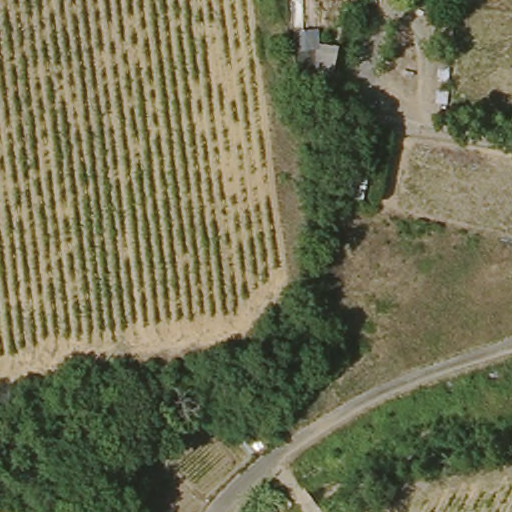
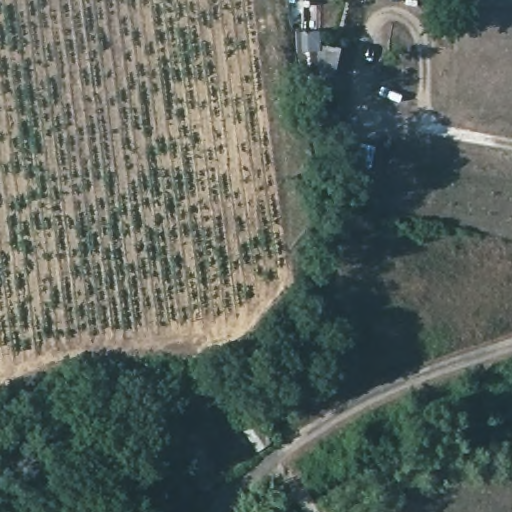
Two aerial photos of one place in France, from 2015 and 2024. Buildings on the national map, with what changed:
unchanged [(334,199),(347,141),(375,153),(360,204),(334,199)]

